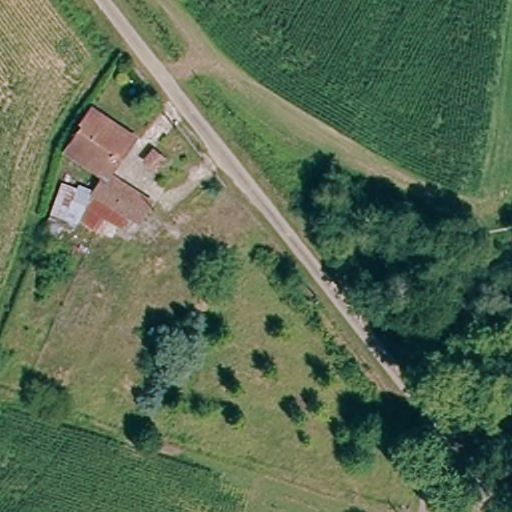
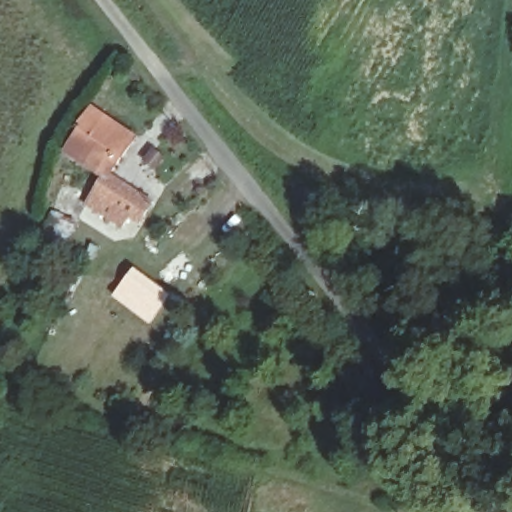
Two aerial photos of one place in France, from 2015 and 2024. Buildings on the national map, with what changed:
unchanged [(93,192),(104,173),(67,146),(82,124),(79,120),(91,105),(133,136),(109,173),(150,199),(138,219),(129,214),(93,192)]
unchanged [(121,227),(105,217),(95,229),(79,219),(77,222),(50,211),(61,181),(93,194),(93,192),(129,214),(121,227)]
new [(172,295),(150,324),(113,296),(135,268),(172,295)]

